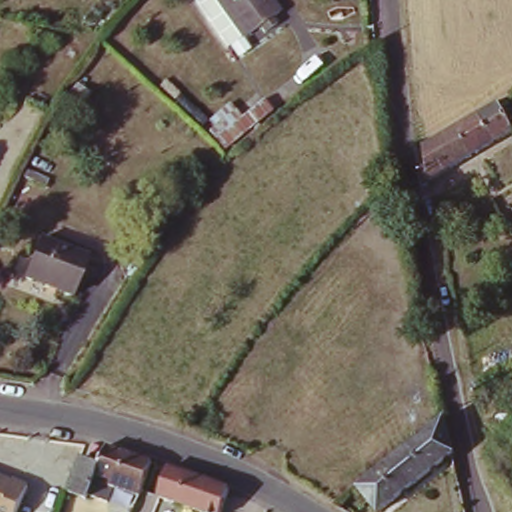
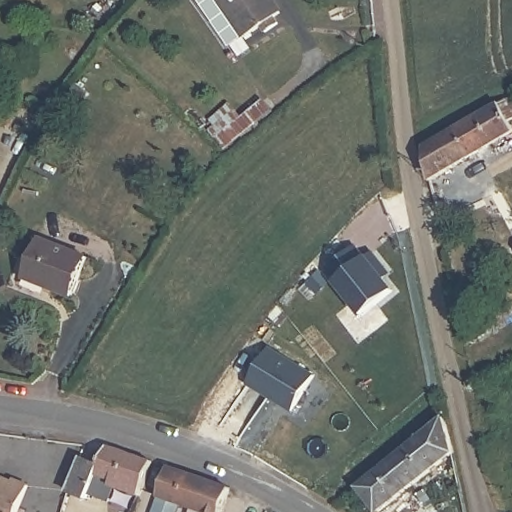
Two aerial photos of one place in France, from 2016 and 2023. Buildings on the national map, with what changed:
unchanged [(281,16),(275,20),(281,29),(266,38),(262,30),(231,52),(191,0),(272,0),(281,16)]
unchanged [(512,112),(512,129),(505,133),(511,142),(492,153),(475,124),(507,105),(512,112)]
unchanged [(427,192),(420,156),(475,124),(492,153),(479,161),(427,192)]
unchanged [(92,262),(72,305),(19,287),(44,240),(92,262)]
new [(359,246),(396,294),(360,320),(325,272),(359,246)]
new [(268,350),(313,378),(292,416),(247,388),(268,350)]
unchanged [(375,512),(358,494),(441,424),(450,464),(392,512),(375,512)]
unchanged [(110,453),(153,468),(142,497),(98,482),(91,499),(106,505),(103,512),(88,512),(85,511),(87,506),(70,499),(84,465),(101,472),(110,453)]
unchanged [(165,474),(210,488),(229,496),(222,512),(182,512),(155,502),(165,474)]
unchanged [(17,485),(34,492),(25,512),(0,512),(0,482),(16,489),(17,485)]

